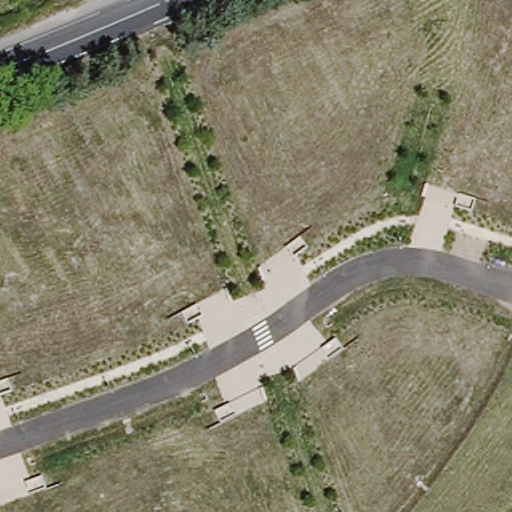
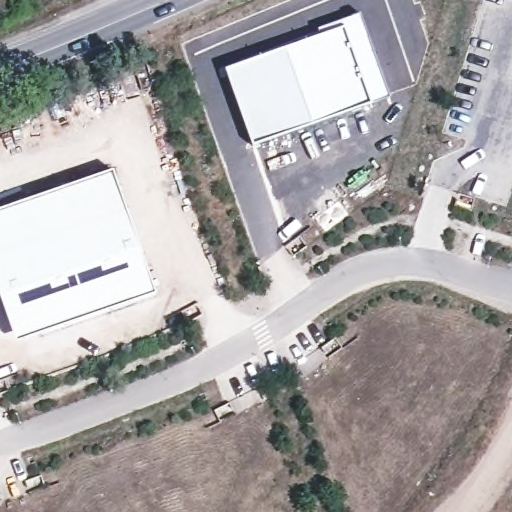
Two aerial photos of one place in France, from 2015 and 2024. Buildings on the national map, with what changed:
new [(255,143),(231,68),(362,22),(389,97),(255,143)]
new [(157,298),(15,346),(0,300),(0,212),(113,171),(157,298)]

